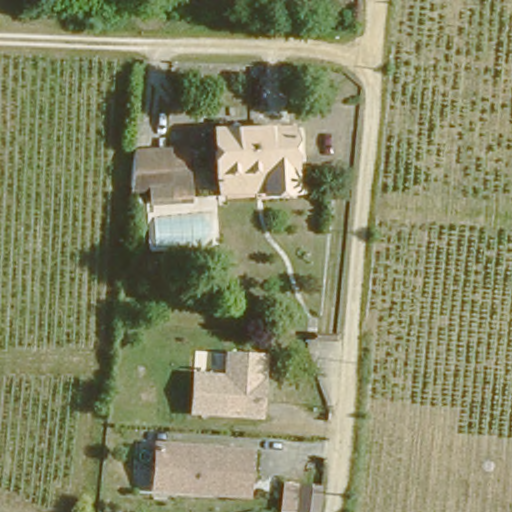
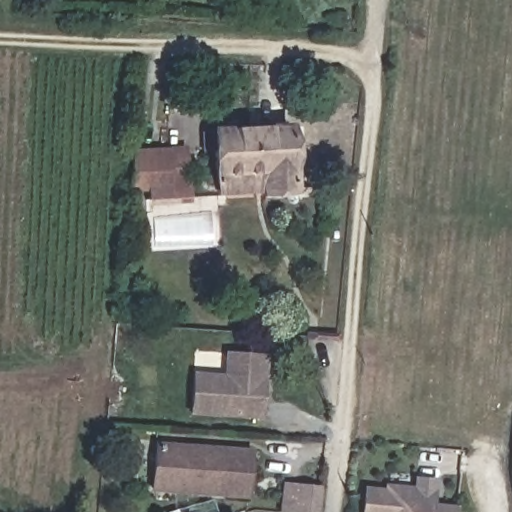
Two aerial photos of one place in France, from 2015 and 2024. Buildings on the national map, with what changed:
unchanged [(210,122),(286,124),(285,190),(259,189),(260,171),(210,170),(210,122)]
unchanged [(185,148),(187,167),(172,169),(170,204),(150,202),(150,190),(132,187),(135,154),(185,148)]
unchanged [(222,372),(224,349),(275,350),(268,418),(187,415),(190,371),(222,372)]
unchanged [(256,448),(253,500),(154,494),(156,443),(256,448)]
new [(363,487),(383,489),(383,483),(411,486),(412,476),(436,478),(433,504),(457,506),(456,512),(361,512),(363,487)]
new [(303,485),(324,487),(322,512),(302,512),(303,485)]

